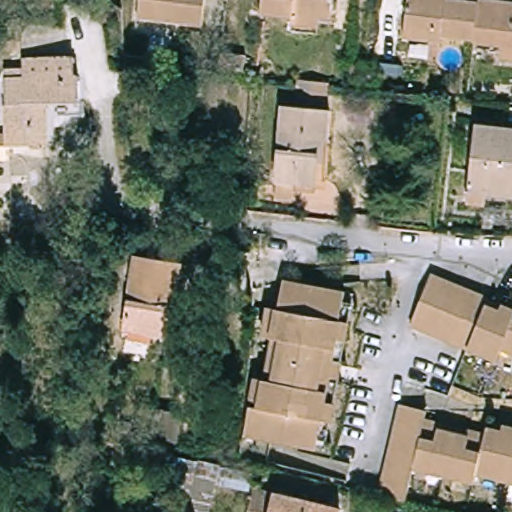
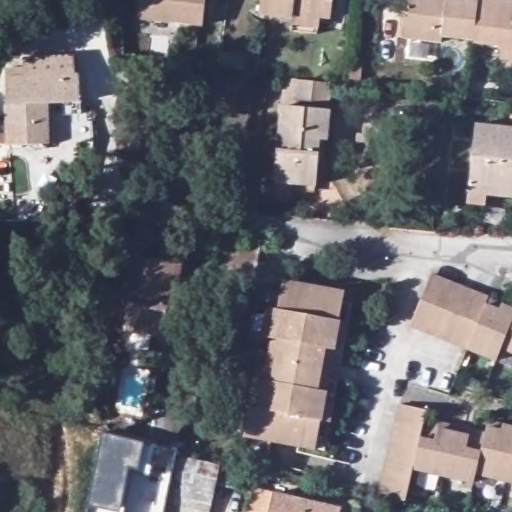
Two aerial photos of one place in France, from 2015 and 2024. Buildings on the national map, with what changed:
unchanged [(203,29),(138,21),(141,0),(207,0),(203,29)]
unchanged [(291,26),(292,21),(261,17),(263,0),(333,0),(330,20),(320,19),(319,29),(291,26)]
unchanged [(408,39),(410,27),(413,0),(449,0),(483,4),(478,40),(447,36),(446,43),(408,39)]
unchanged [(506,47),(478,43),(478,40),(483,4),(483,0),(490,0),(512,3),(512,59),(505,58),(506,47)]
unchanged [(5,130),(5,73),(24,73),(25,55),(75,54),(76,72),(78,72),(78,97),(43,98),(44,140),(6,141),(0,142),(0,131),(5,130)]
unchanged [(317,163),(314,186),(274,180),(283,108),(332,114),(328,142),(326,141),(322,164),(317,163)]
unchanged [(469,184),(477,128),(512,132),(512,197),(469,191),(469,184)]
unchanged [(177,322),(171,321),(169,334),(131,329),(142,256),(187,262),(177,322)]
unchanged [(320,436),(319,444),(246,431),(258,374),(268,376),(276,334),(265,332),(271,302),(282,304),(287,278),(349,289),(347,299),(356,301),(352,319),(343,363),(341,376),(333,420),(329,437),(320,436)]
unchanged [(501,365),(415,329),(436,278),(493,303),(491,309),(502,314),(504,309),(512,312),(512,355),(506,352),(501,365)]
unchanged [(161,403),(180,407),(180,411),(186,413),(181,438),(154,432),(161,403)]
unchanged [(403,404),(430,410),(428,420),(418,470),(410,502),(393,499),(382,496),(403,404)]
unchanged [(491,421),(507,425),(512,426),(512,481),(478,473),(476,482),(446,476),(418,470),(428,420),(444,423),(458,426),(474,430),(488,433),(490,428),(491,421)]
new [(157,446),(150,475),(138,471),(132,470),(126,507),(125,512),(86,512),(88,506),(102,433),(144,442),(157,446)]
unchanged [(216,485),(209,512),(176,512),(180,490),(169,488),(176,454),(223,464),(254,471),(250,490),(216,485)]
unchanged [(273,487),(341,503),(339,512),(250,512),(255,485),(273,487)]

